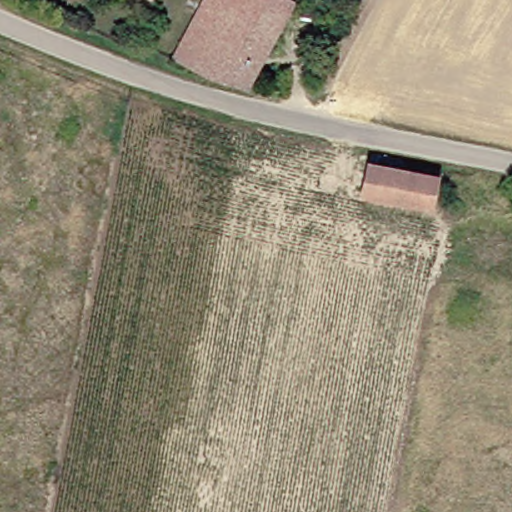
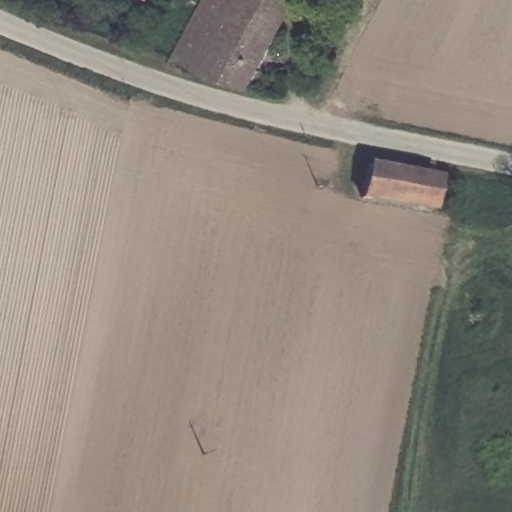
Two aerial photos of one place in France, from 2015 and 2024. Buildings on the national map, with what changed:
unchanged [(204,0),(281,0),(240,82),(172,61),(204,0)]
unchanged [(296,3),(253,87),(240,82),(281,0),(289,0),(296,3)]
unchanged [(437,173),(429,208),(359,195),(365,160),(437,173)]

